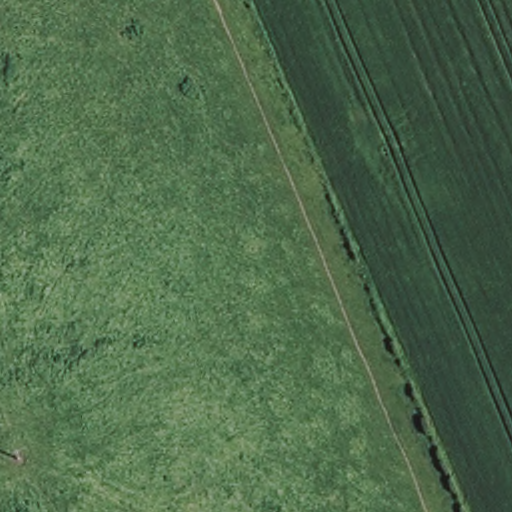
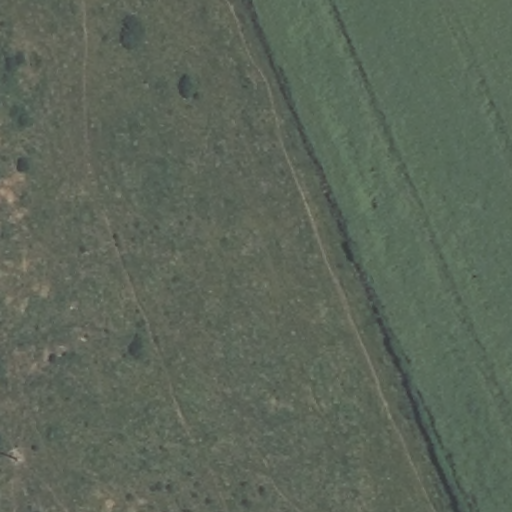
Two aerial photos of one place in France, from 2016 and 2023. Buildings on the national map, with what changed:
[]

